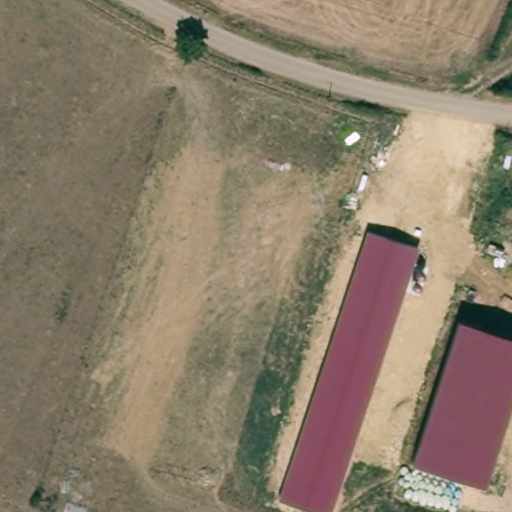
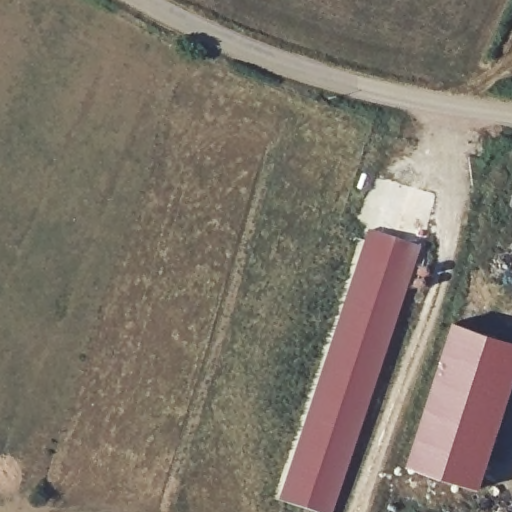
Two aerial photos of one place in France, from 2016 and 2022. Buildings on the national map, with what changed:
unchanged [(279,499),(367,230),(418,247),(332,512),(314,512),(279,499)]
unchanged [(512,338),(512,401),(484,487),(412,464),(458,321),(512,338)]

